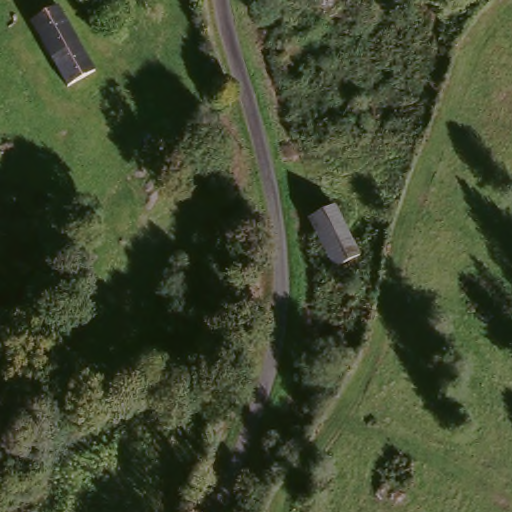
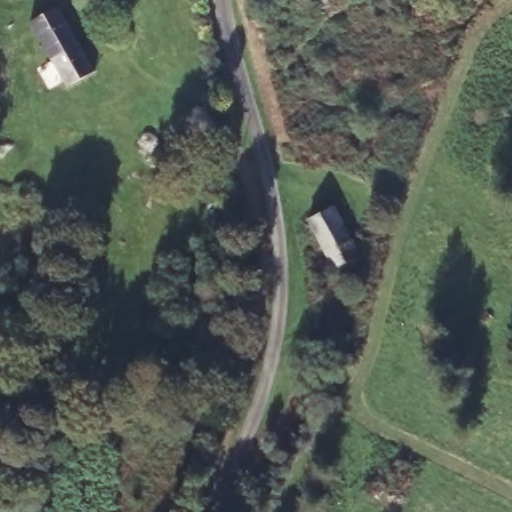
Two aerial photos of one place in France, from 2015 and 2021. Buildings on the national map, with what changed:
unchanged [(83,74),(56,88),(24,26),(51,12),(83,74)]
unchanged [(328,210),(354,263),(326,276),(307,237),(301,223),(311,218),(328,210)]

